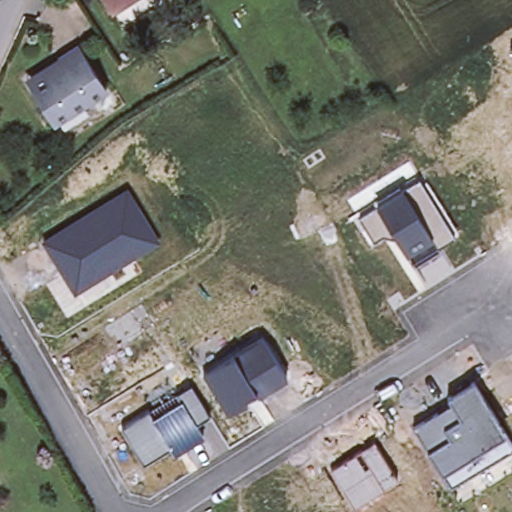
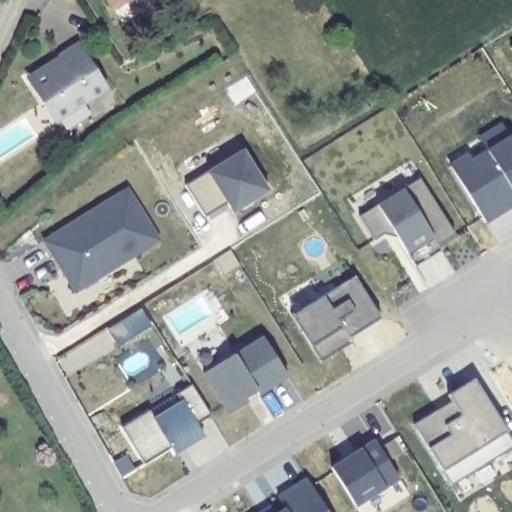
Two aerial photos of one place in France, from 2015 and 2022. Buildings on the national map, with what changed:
unchanged [(110,0),(122,0),(114,5),(110,0)]
unchanged [(104,92),(54,123),(27,78),(61,58),(56,50),(73,41),(104,92)]
unchanged [(511,47),(512,47),(512,50),(511,47)]
new [(506,127),(512,138),(512,210),(489,224),(450,161),(506,127)]
new [(186,184),(206,171),(244,148),(268,190),(232,211),(226,202),(204,214),(186,184)]
unchanged [(414,266),(407,253),(395,237),(381,235),(374,240),(360,216),(376,205),(374,199),(399,186),(402,190),(407,186),(404,181),(416,176),(419,179),(421,183),(426,180),(457,230),(451,232),(452,235),(436,246),(439,252),(414,266)]
unchanged [(74,293),(43,239),(127,186),(161,240),(74,293)]
new [(342,353),(323,365),(302,332),(294,318),(303,312),(357,278),(384,321),(352,341),(355,345),(342,353)]
new [(145,312),(155,329),(139,339),(122,350),(111,333),(129,322),(145,312)]
unchanged [(205,372),(235,354),(261,336),(289,377),(257,396),(256,391),(245,398),(247,402),(230,411),(205,372)]
unchanged [(429,447),(414,426),(451,399),(447,395),(473,380),(474,380),(505,431),(512,445),(450,482),(442,469),(429,447)]
unchanged [(123,426),(191,384),(210,414),(196,423),(202,436),(175,455),(168,447),(145,461),(123,426)]
unchanged [(332,466),(375,441),(399,479),(356,504),(332,466)]
new [(281,501),(310,482),(328,512),(287,512),(281,501)]
new [(274,510),(275,512),(270,512),(274,510)]

